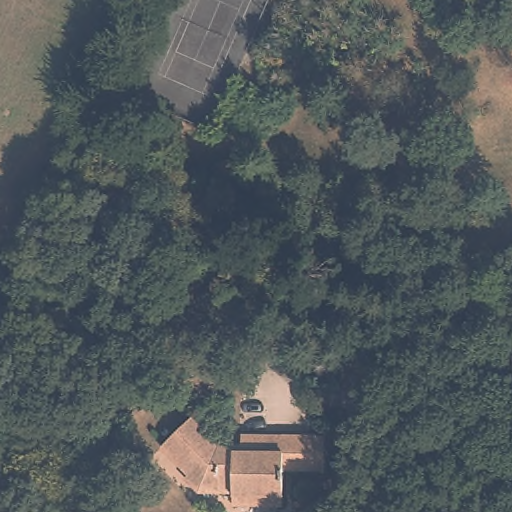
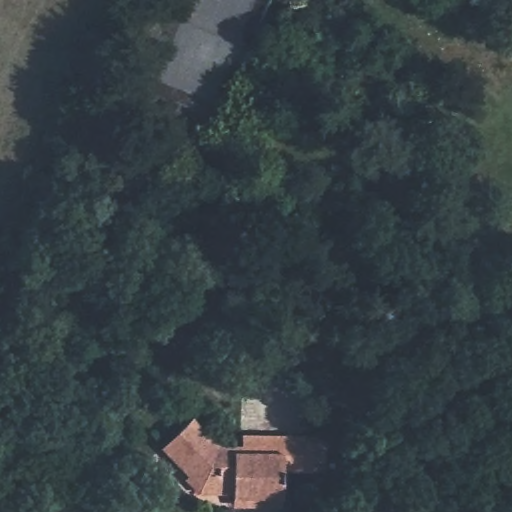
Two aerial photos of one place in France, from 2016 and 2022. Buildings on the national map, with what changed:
unchanged [(186,416),(219,447),(284,447),(284,439),(326,439),(326,475),(285,475),(285,507),(233,507),(232,488),(203,488),(159,441),(186,416)]

